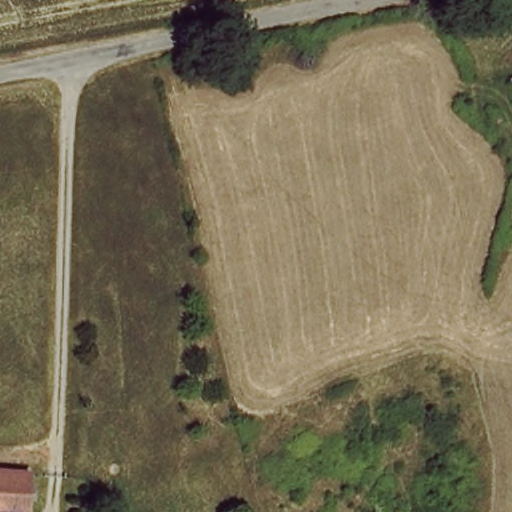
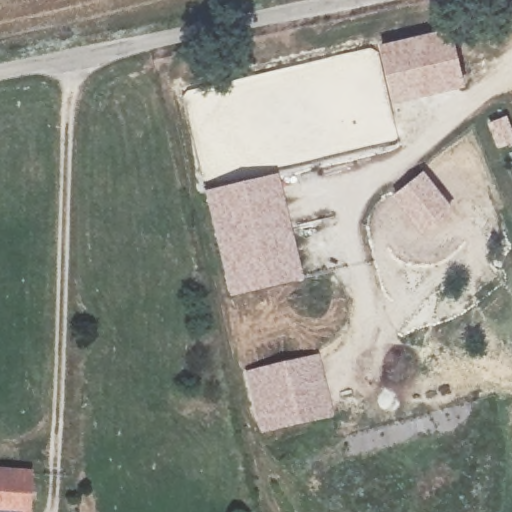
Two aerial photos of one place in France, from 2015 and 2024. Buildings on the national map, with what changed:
new [(450,28),(466,85),(395,104),(380,42),(450,28)]
new [(424,170),(454,207),(423,234),(392,196),(424,170)]
new [(277,174),(302,280),(229,298),(204,191),(277,174)]
new [(319,354),(334,417),(262,436),(246,372),(319,354)]
unchanged [(29,471),(29,512),(0,512),(0,470),(29,471)]

